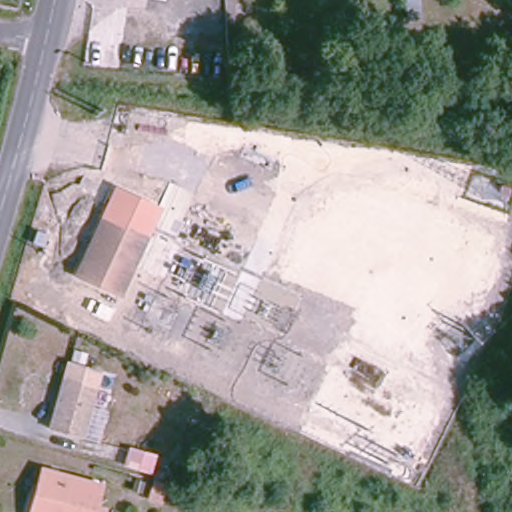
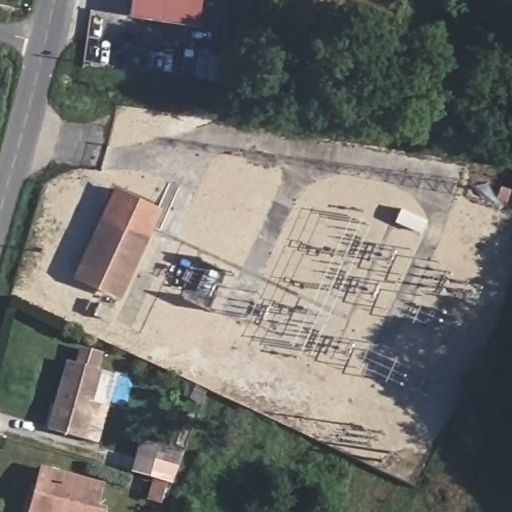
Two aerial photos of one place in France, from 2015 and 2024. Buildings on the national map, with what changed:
new [(198,26),(129,15),(132,0),(202,0),(198,26)]
unchanged [(103,216),(116,184),(162,207),(145,235),(103,216)]
unchanged [(77,274),(103,216),(145,235),(119,293),(77,274)]
unchanged [(63,378),(96,388),(81,440),(48,430),(63,378)]
unchanged [(100,485),(94,507),(104,508),(103,512),(30,512),(39,470),(100,485)]

